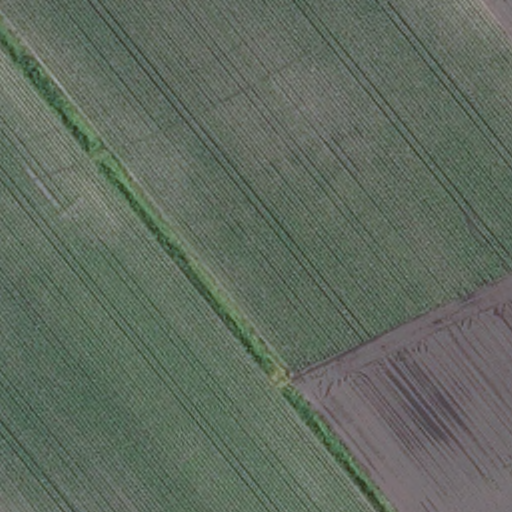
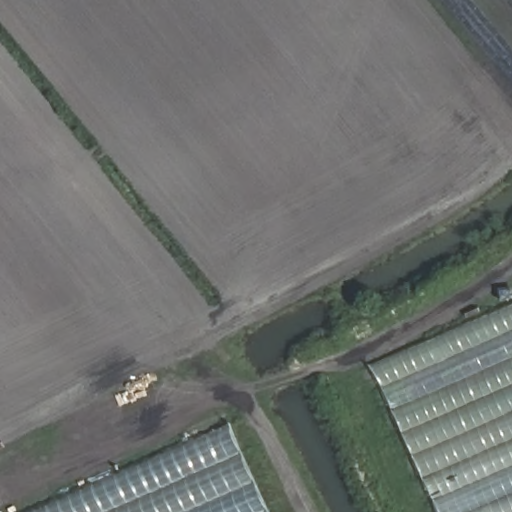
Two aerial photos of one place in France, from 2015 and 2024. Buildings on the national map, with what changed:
new [(439,512),(373,365),(512,304),(512,512),(439,512)]
new [(271,512),(30,512),(232,424),(271,512)]

